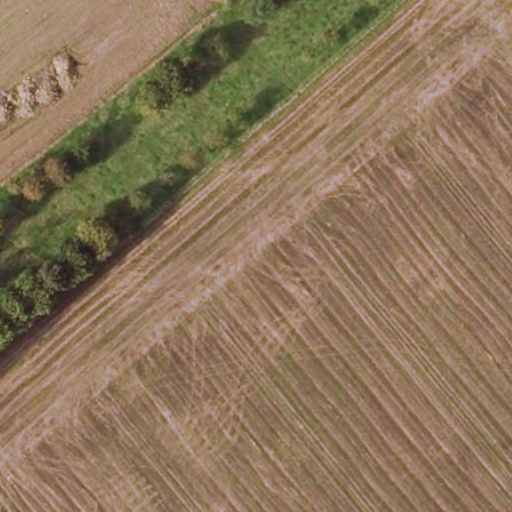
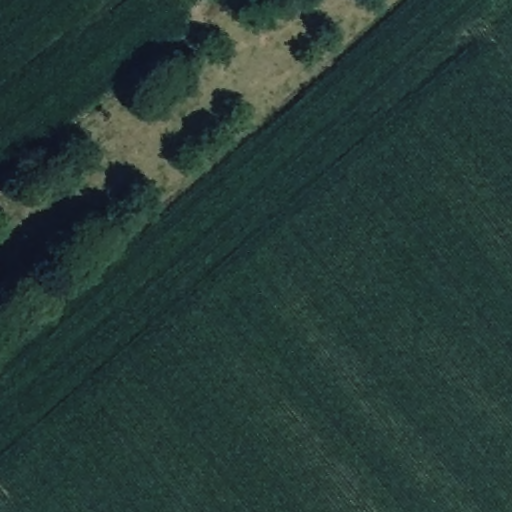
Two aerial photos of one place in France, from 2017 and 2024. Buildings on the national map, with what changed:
[]

